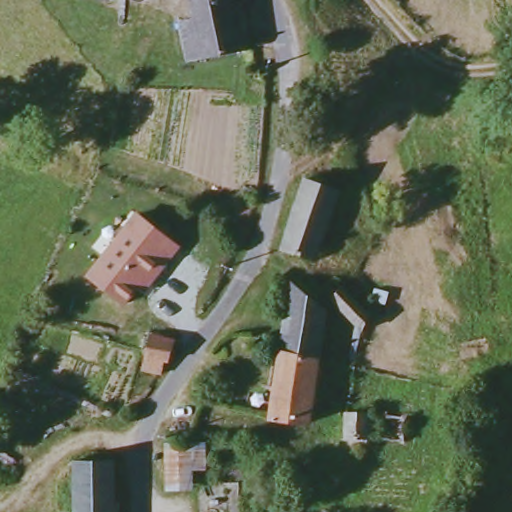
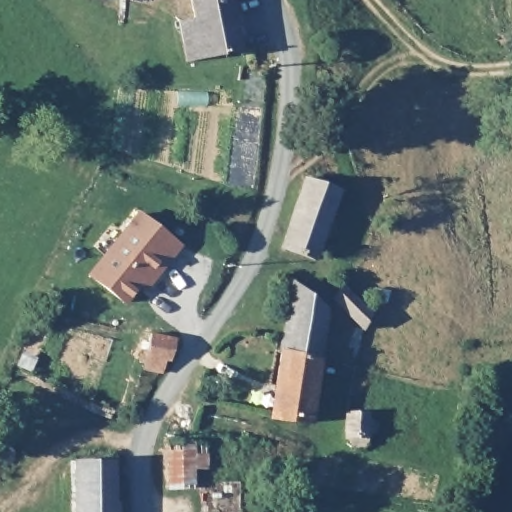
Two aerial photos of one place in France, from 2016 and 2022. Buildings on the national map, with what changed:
unchanged [(96,0),(103,0),(102,2),(96,0)]
unchanged [(122,0),(137,0),(136,5),(122,0)]
unchanged [(185,65),(180,37),(177,23),(191,21),(187,0),(226,0),(236,55),(185,65)]
unchanged [(337,191),(310,263),(279,249),(306,179),(337,191)]
unchanged [(135,212),(181,248),(146,292),(139,286),(124,306),(84,274),(135,212)]
unchanged [(320,316),(304,432),(265,428),(283,294),(320,316)]
unchanged [(366,320),(356,334),(324,308),(335,294),(366,320)]
unchanged [(174,336),(171,341),(168,360),(159,360),(156,369),(136,367),(143,330),(174,336)]
unchanged [(379,412),(403,412),(402,435),(397,435),(397,444),(393,446),(387,446),(384,437),(378,436),(361,443),(344,446),(342,414),(379,416),(379,412)]
unchanged [(193,438),(196,486),(175,486),(172,438),(193,438)]
unchanged [(112,512),(69,512),(69,460),(111,461),(112,512)]

